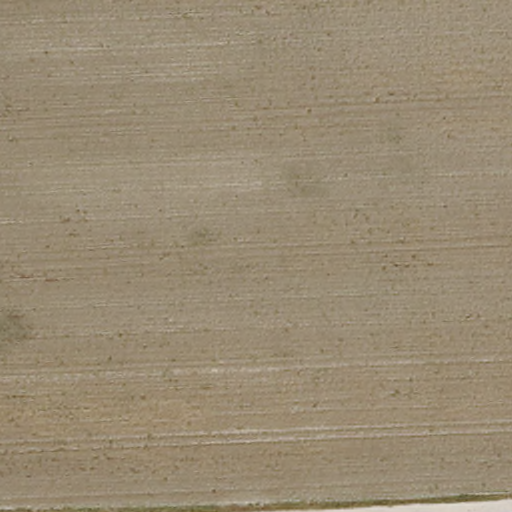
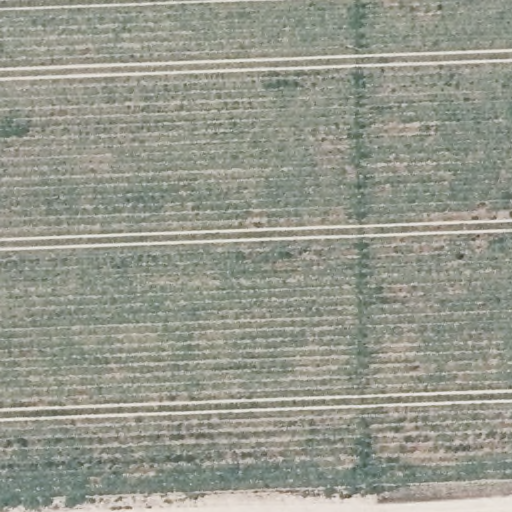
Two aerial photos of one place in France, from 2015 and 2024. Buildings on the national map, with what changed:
[]

